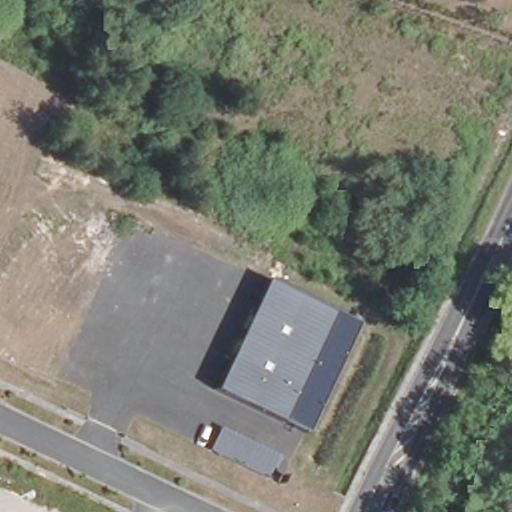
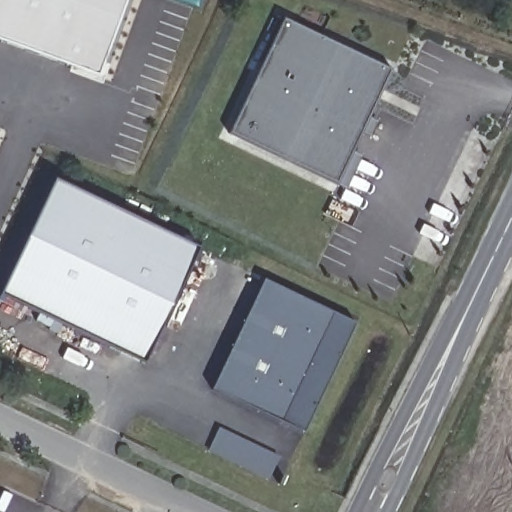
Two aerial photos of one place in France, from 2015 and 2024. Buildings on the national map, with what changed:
new [(0,41),(0,0),(128,0),(100,77),(0,41)]
new [(285,20),(390,70),(352,150),(361,155),(346,187),(336,182),(231,132),(285,20)]
new [(199,250),(144,362),(0,293),(0,292),(55,180),(199,250)]
unchanged [(306,433),(211,390),(265,281),(358,325),(306,433)]
unchanged [(206,448),(215,426),(280,457),(270,480),(206,448)]

